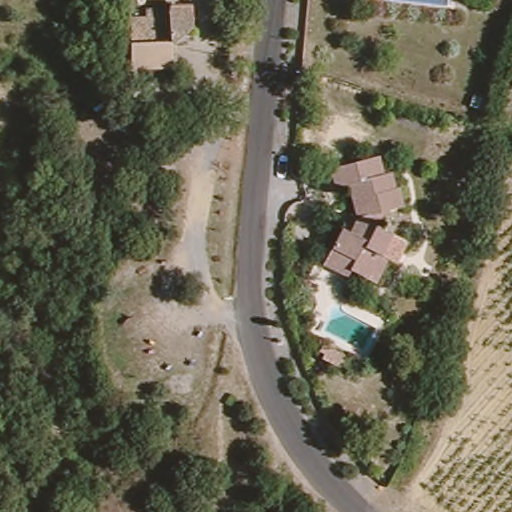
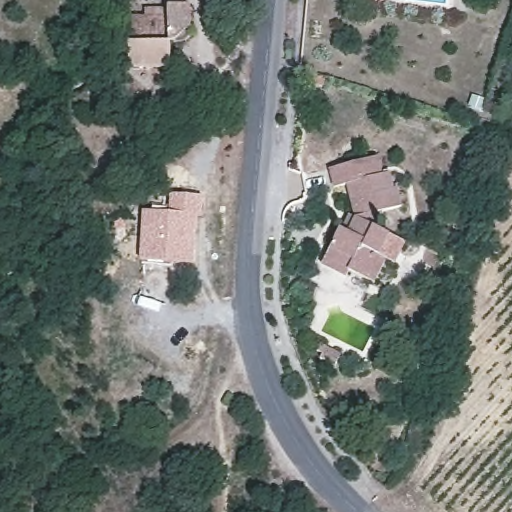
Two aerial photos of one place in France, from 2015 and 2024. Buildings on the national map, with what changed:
unchanged [(122,14),(136,14),(135,4),(159,3),(183,1),(183,26),(181,33),(175,37),(163,39),(163,55),(163,66),(123,66),(122,50),(122,14)]
unchanged [(363,280),(345,270),(341,276),(318,264),(327,248),(336,229),(340,230),(347,215),(351,217),(344,184),(331,188),(326,167),(375,156),(380,177),(387,175),(391,189),(394,188),(399,208),(378,214),(372,229),(386,237),(401,244),(390,264),(383,260),(370,283),(363,280)]
new [(142,209),(168,209),(169,193),(200,194),(194,264),(139,260),(142,209)]
unchanged [(329,340),(325,338),(328,331),(346,341),(341,353),(327,345),(329,340)]

